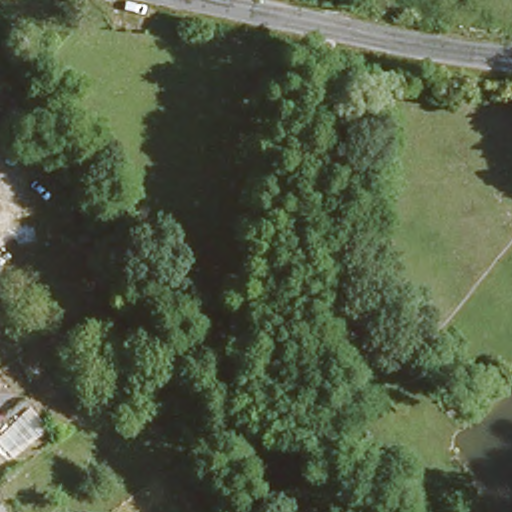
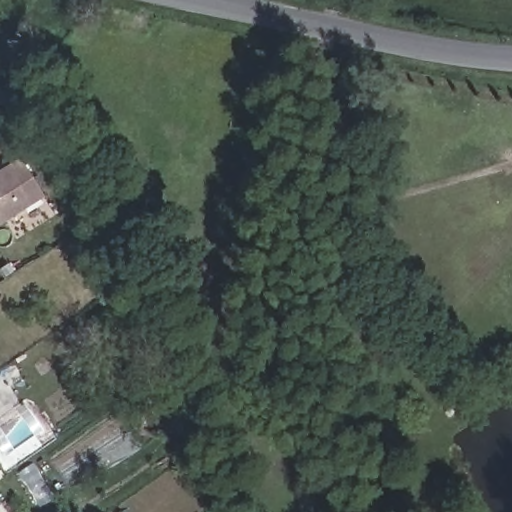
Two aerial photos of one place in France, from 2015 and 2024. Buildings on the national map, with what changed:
unchanged [(19,119),(10,111),(15,106),(22,114),(19,119)]
new [(18,158),(44,197),(0,226),(0,169),(18,158)]

